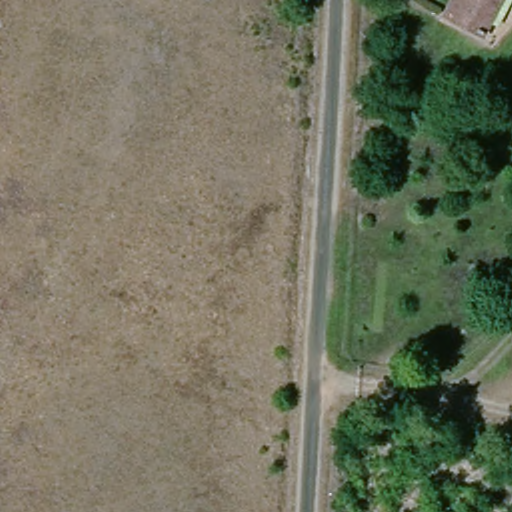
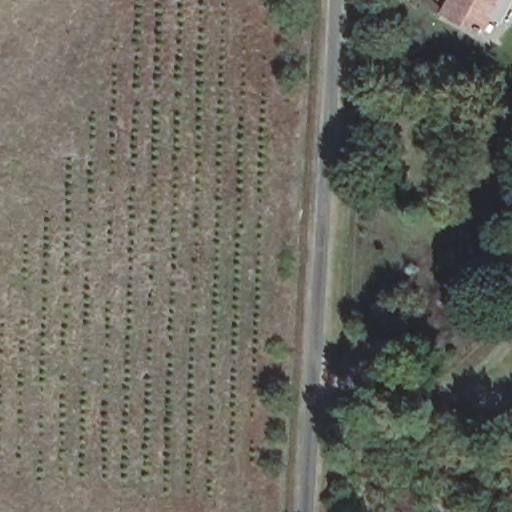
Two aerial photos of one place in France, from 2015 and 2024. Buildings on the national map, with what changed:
unchanged [(460,16),(441,2),(443,0),(497,0),(486,15),(476,28),(460,16)]

